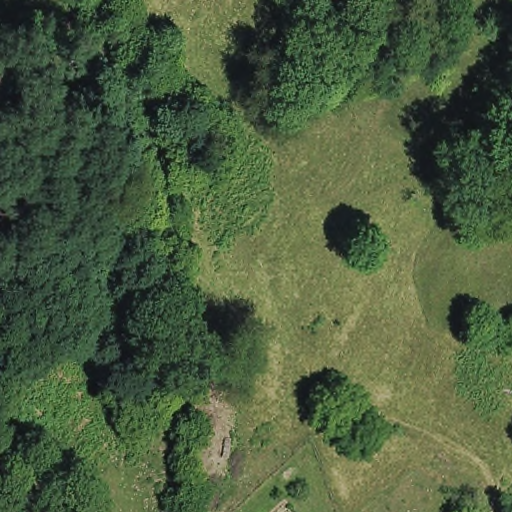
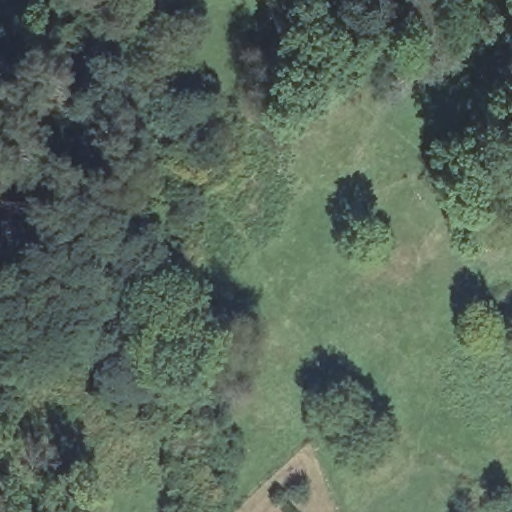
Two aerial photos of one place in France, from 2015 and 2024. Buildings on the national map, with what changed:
unchanged [(0,493),(29,512),(0,512),(0,493)]

